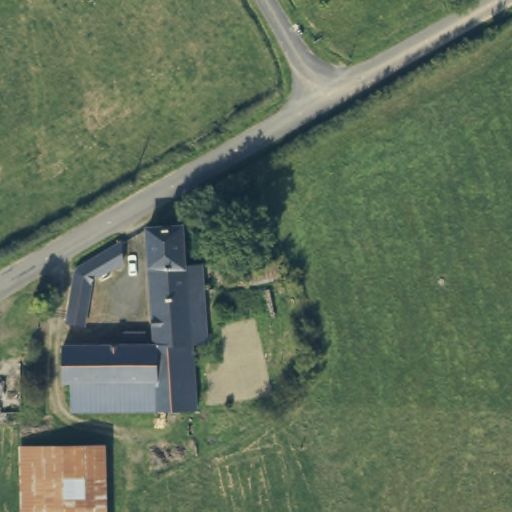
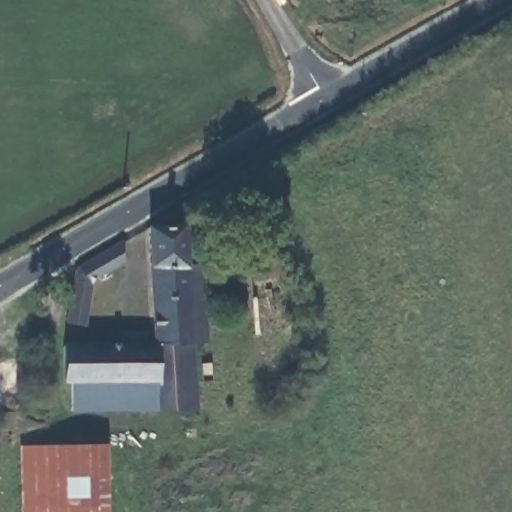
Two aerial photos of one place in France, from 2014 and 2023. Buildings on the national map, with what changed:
unchanged [(151,347),(151,234),(190,233),(190,268),(210,267),(211,296),(205,296),(207,304),(206,347),(189,347),(151,347)]
unchanged [(96,283),(94,278),(84,287),(80,326),(65,325),(69,287),(72,275),(83,267),(81,263),(96,255),(125,239),(122,261),(104,270),(107,277),(96,283)]
unchanged [(118,351),(118,341),(142,341),(142,352),(151,352),(151,381),(67,379),(59,378),(63,347),(118,351)]
unchanged [(151,347),(189,347),(189,392),(189,406),(151,407),(151,381),(151,352),(151,347)]
unchanged [(102,407),(102,400),(67,401),(67,379),(151,381),(151,407),(102,407)]
unchanged [(31,451),(61,450),(100,448),(102,512),(32,512),(30,451),(31,451)]

